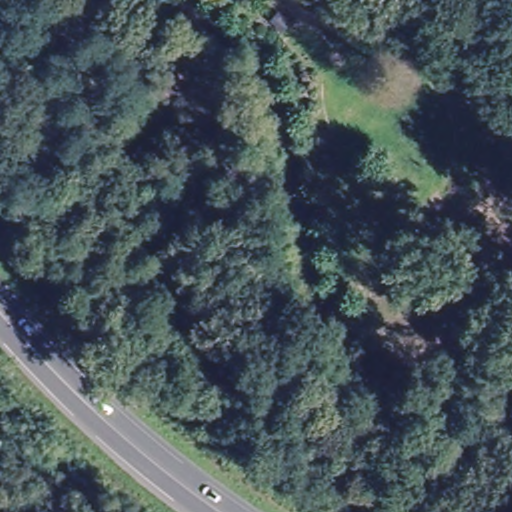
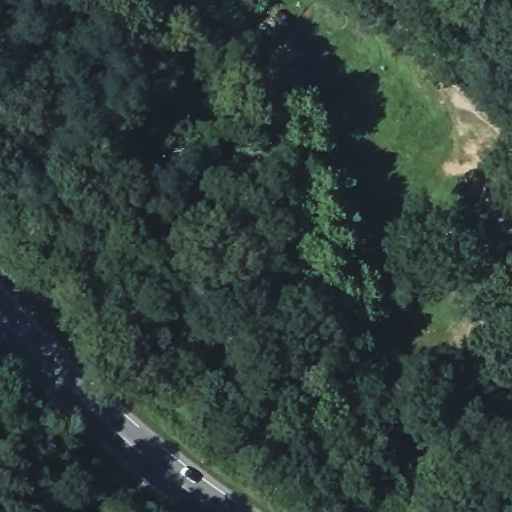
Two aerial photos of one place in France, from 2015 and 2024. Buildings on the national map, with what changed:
unchanged [(291,23),(283,32),(271,22),(279,13),(291,23)]

